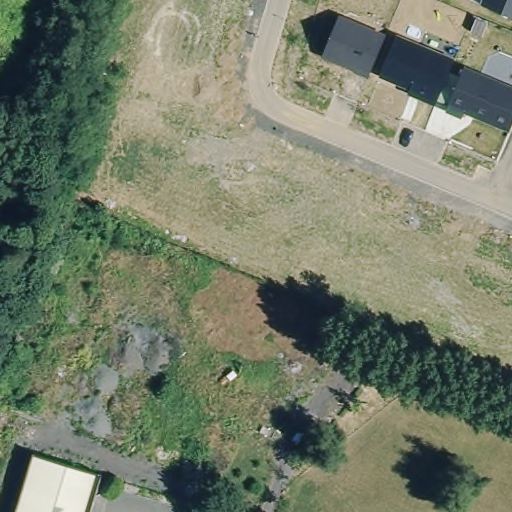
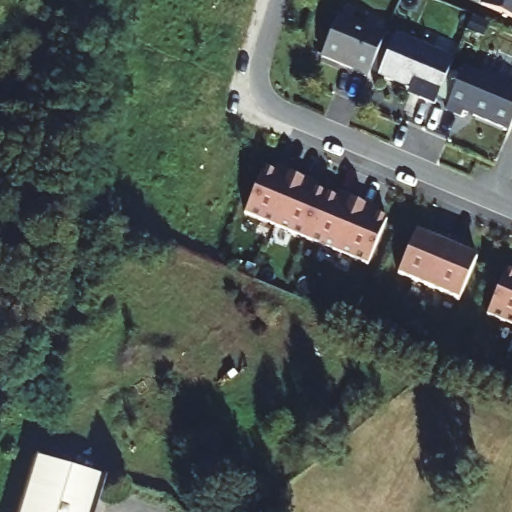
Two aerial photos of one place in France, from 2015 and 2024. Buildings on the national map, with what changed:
unchanged [(512,0),(512,17),(480,5),(482,0),(512,0)]
unchanged [(338,15),(386,35),(368,79),(321,57),(338,15)]
unchanged [(396,36),(453,59),(435,105),(407,95),(408,88),(380,76),(396,36)]
unchanged [(508,132),(463,111),(461,117),(446,111),(465,67),(512,87),(512,124),(508,132)]
new [(274,172),(278,165),(292,170),(290,174),(300,177),(302,175),(319,182),(316,187),(335,197),(339,190),(350,195),(349,199),(362,205),(363,202),(382,210),(380,216),(387,220),(369,265),(245,214),(265,167),(274,172)]
new [(477,256),(460,300),(399,275),(417,230),(477,256)]
new [(512,271),(512,325),(487,314),(507,268),(512,271)]
unchanged [(29,458),(103,481),(93,512),(12,512),(29,458)]

